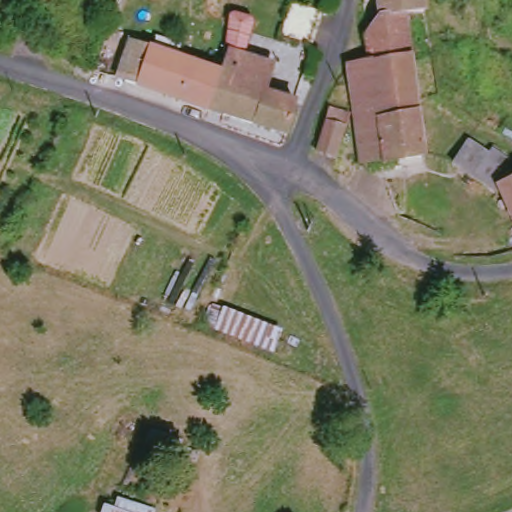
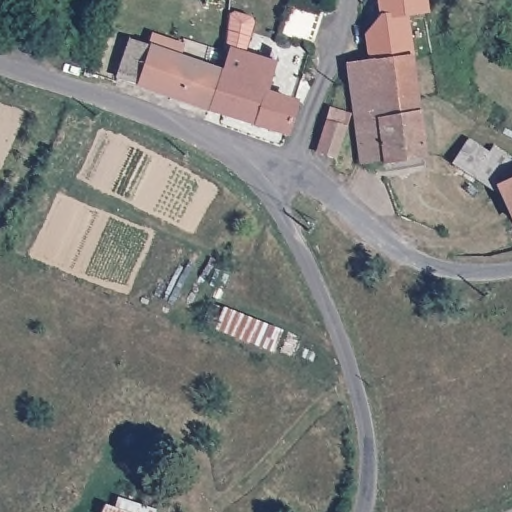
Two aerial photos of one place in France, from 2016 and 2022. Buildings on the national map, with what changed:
unchanged [(372,17),(371,0),(413,0),(417,16),(397,17),(405,56),(355,59),(354,35),(372,17)]
unchanged [(116,76),(128,37),(148,45),(217,70),(205,106),(136,82),(116,76)]
unchanged [(205,106),(217,70),(225,47),(270,62),(262,91),(291,101),(280,131),(205,106)]
unchanged [(405,56),(416,146),(418,159),(357,165),(343,59),(355,59),(405,56)]
unchanged [(313,152),(321,123),(325,107),(341,110),(338,126),(333,154),(313,152)]
unchanged [(496,190),(470,175),(445,162),(456,141),(480,154),(489,141),(512,154),(512,160),(511,162),(512,163),(512,172),(509,179),(512,177),(512,229),(501,203),(496,190)]
unchanged [(281,331),(272,348),(208,323),(215,304),(281,331)]
unchanged [(99,512),(102,502),(110,505),(115,497),(155,511),(155,512),(99,512)]

